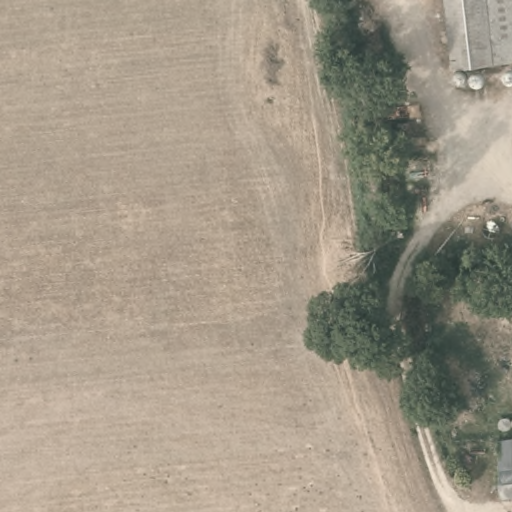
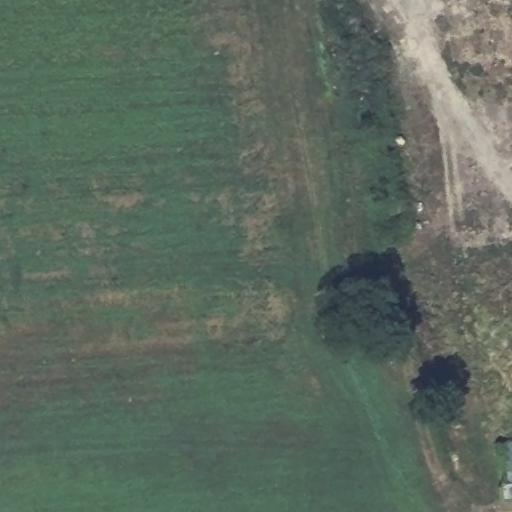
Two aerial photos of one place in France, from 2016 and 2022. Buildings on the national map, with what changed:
demolished [(512,0),(512,56),(454,64),(449,0),(512,0)]
unchanged [(507,443),(512,442),(512,461),(507,461),(507,443)]
unchanged [(512,461),(512,493),(511,493),(507,461),(512,461)]

